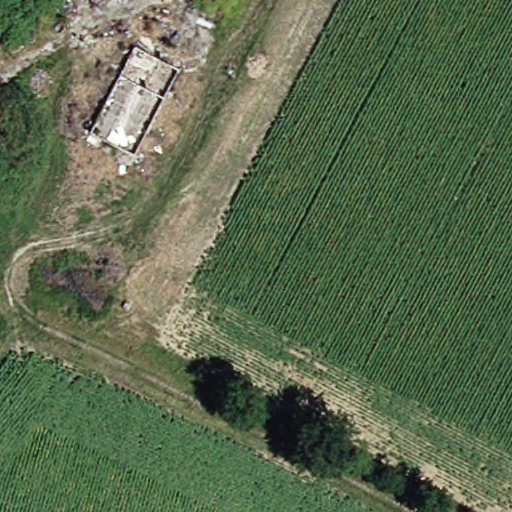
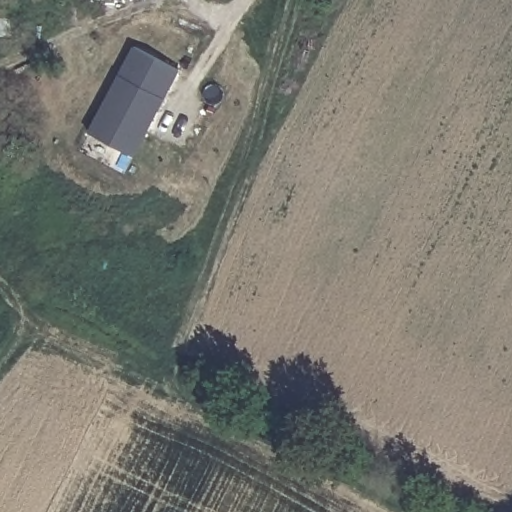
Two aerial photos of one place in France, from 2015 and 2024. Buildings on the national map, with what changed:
new [(180,70),(136,157),(89,134),(133,47),(180,70)]
demolished [(126,165),(116,159),(83,140),(113,82),(151,101),(158,105),(126,165)]

